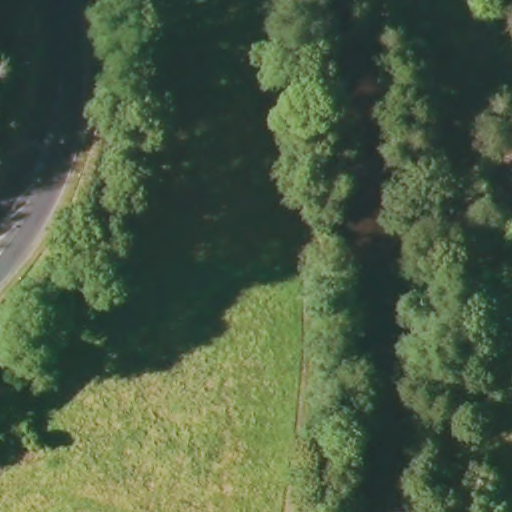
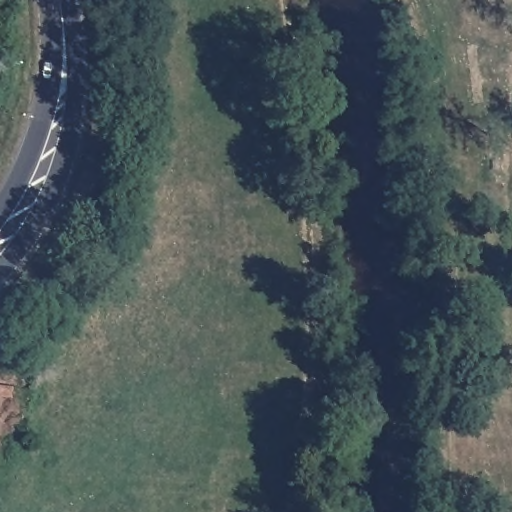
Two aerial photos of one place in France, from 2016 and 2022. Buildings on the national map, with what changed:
unchanged [(0,396),(0,386),(12,389),(9,397),(0,396)]

